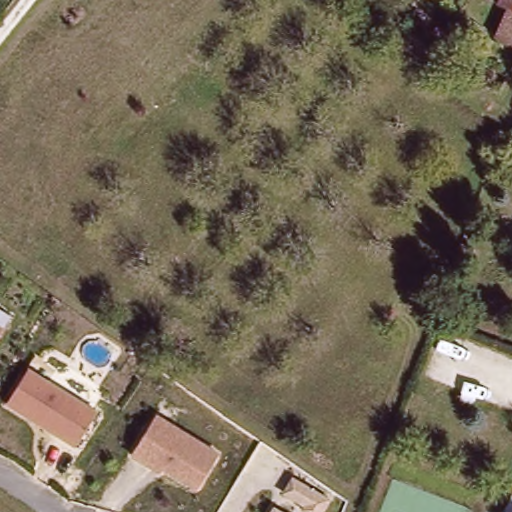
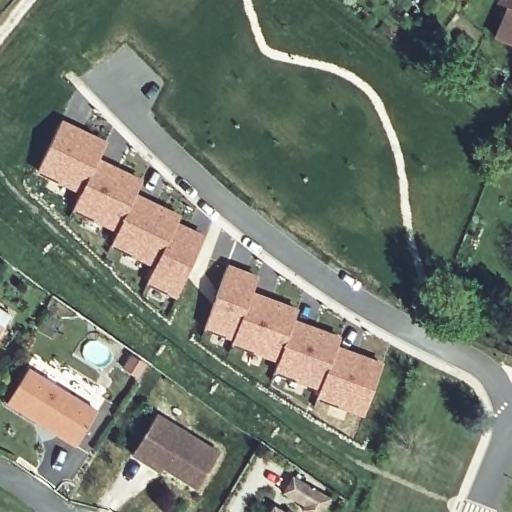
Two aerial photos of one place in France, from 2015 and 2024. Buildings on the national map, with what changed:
unchanged [(507,4),(497,0),(512,0),(512,44),(493,37),(507,4)]
new [(100,158),(143,180),(136,194),(181,215),(178,223),(206,236),(176,298),(166,294),(167,293),(147,284),(155,268),(131,257),(131,255),(111,245),(117,233),(93,221),(94,219),(73,210),(81,195),(57,183),(57,181),(37,172),(62,120),(108,142),(100,158)]
new [(228,265),(260,276),(253,291),(300,308),(295,320),(341,337),(338,346),(385,363),(364,417),(339,408),(339,406),(317,398),(320,391),(296,382),(296,380),(275,372),(278,363),(253,354),(253,352),(232,344),(233,342),(225,339),(225,337),(205,329),(228,265)]
unchanged [(3,329),(0,333),(0,327),(3,329)]
unchanged [(75,445),(7,402),(28,368),(96,411),(75,445)]
unchanged [(151,465),(132,453),(155,415),(218,454),(197,488),(161,466),(159,471),(151,465)]
unchanged [(319,512),(305,512),(302,511),(305,506),(284,493),(291,480),(326,500),(319,512)]
unchanged [(283,512),(277,512),(278,510),(283,512)]

